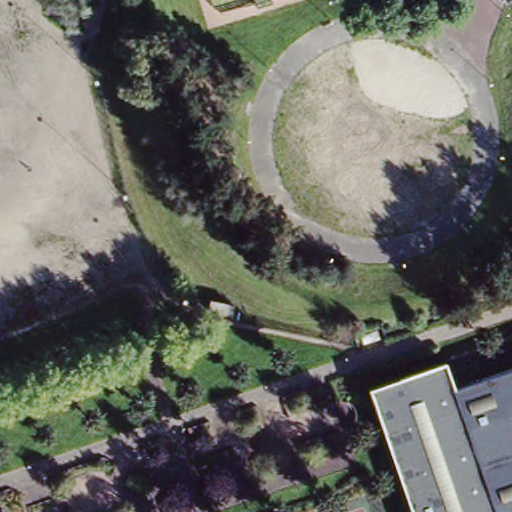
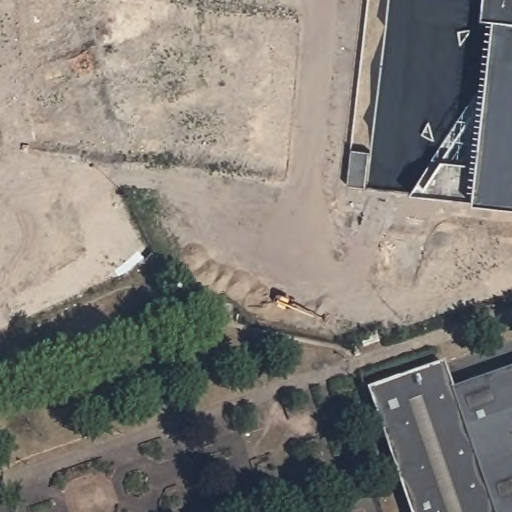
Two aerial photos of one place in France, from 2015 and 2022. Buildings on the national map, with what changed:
new [(481,24),(483,0),(512,0),(512,215),(470,210),(469,207),(492,28),(481,24)]
unchanged [(438,364),(447,396),(512,372),(512,512),(406,512),(364,390),(438,364)]

